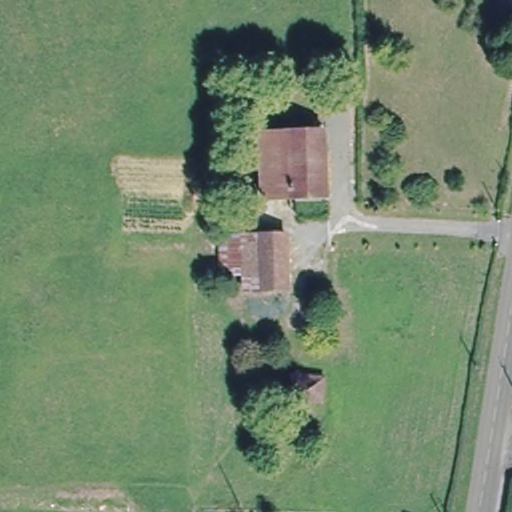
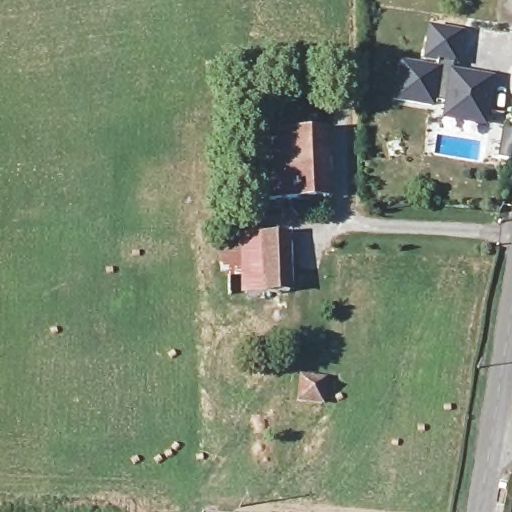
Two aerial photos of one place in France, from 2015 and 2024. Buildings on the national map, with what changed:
new [(446,106),(431,104),(430,108),(393,102),(399,64),(436,71),(437,61),(424,59),(430,27),(462,32),(456,64),(454,64),(452,73),(493,80),(487,116),(485,128),(443,121),(444,115),(446,106)]
unchanged [(264,199),(263,134),(324,131),(327,197),(264,199)]
unchanged [(296,230),(298,285),(240,287),(236,245),(217,247),(216,235),(296,230)]
unchanged [(320,379),(319,401),(302,401),(302,378),(320,379)]

